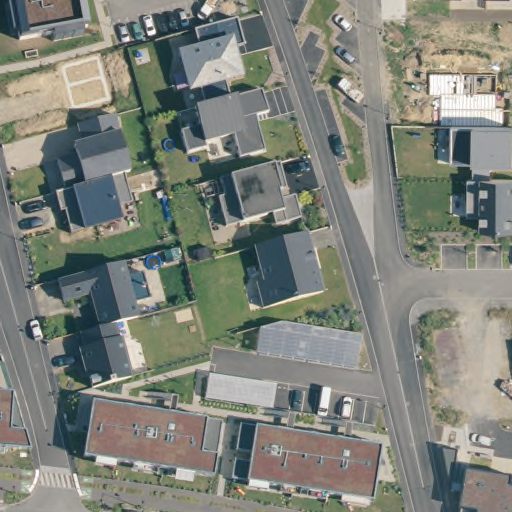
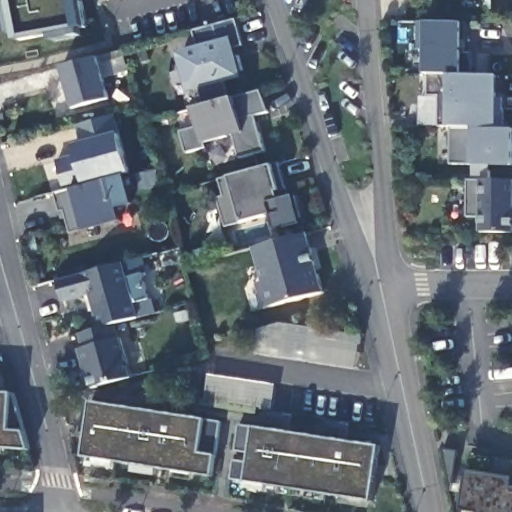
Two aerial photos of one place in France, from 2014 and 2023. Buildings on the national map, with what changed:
unchanged [(85,32),(20,43),(15,0),(79,0),(85,32)]
unchanged [(244,44),(237,47),(245,77),(223,82),(230,101),(207,107),(204,89),(190,93),(180,52),(200,46),(195,31),(237,19),(244,44)]
new [(452,127),(439,127),(439,97),(428,96),(428,75),(429,50),(418,50),(418,22),(429,22),(463,23),(462,73),(498,74),(497,128),(452,127)]
new [(100,59),(111,101),(75,111),(64,69),(100,59)]
unchanged [(241,158),(234,135),(206,143),(207,148),(192,153),(185,132),(201,127),(196,110),(207,107),(230,101),(261,93),(268,114),(257,118),(267,148),(241,158)]
unchanged [(130,169),(60,187),(55,163),(76,156),(74,143),(81,141),(76,125),(116,115),(130,169)]
unchanged [(512,127),(512,165),(490,165),(490,177),(473,177),(474,165),(451,164),(452,127),(512,127)]
unchanged [(279,166),(285,188),(278,191),(281,201),(299,195),(303,218),(278,224),(275,213),(225,225),(219,198),(205,201),(201,186),(279,166)]
unchanged [(134,204),(120,207),(123,221),(73,235),(65,210),(62,211),(56,193),(125,174),(134,204)]
unchanged [(512,178),(512,233),(478,233),(478,216),(464,216),(470,179),(512,178)]
unchanged [(263,309),(257,283),(261,282),(252,248),(308,234),(325,293),(263,309)]
unchanged [(125,263),(129,277),(145,273),(150,298),(138,301),(141,319),(100,328),(91,298),(67,305),(60,280),(125,263)]
unchanged [(359,368),(255,352),(259,327),(283,323),(362,335),(359,368)]
unchanged [(92,389),(79,336),(117,326),(131,379),(92,389)]
unchanged [(277,385),(272,408),(205,399),(206,375),(277,385)]
unchanged [(26,434),(34,451),(0,448),(0,393),(12,394),(11,433),(26,434)]
unchanged [(205,421),(222,424),(216,456),(213,476),(84,457),(94,403),(205,421)]
unchanged [(373,501),(248,481),(231,477),(239,426),(257,428),(379,447),(373,501)]
unchanged [(512,487),(512,512),(460,512),(470,471),(511,479),(512,487)]

